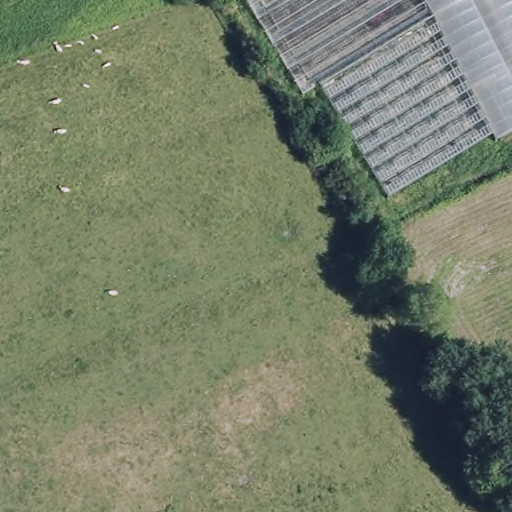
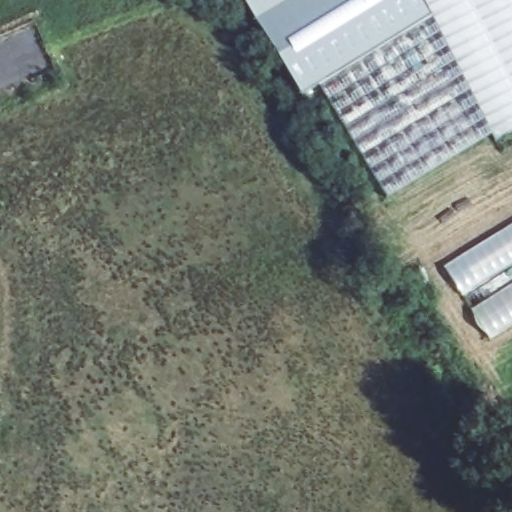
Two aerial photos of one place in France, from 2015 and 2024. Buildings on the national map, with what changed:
unchanged [(238,0),(334,0),(263,44),(238,0)]
unchanged [(420,0),(496,134),(387,200),(322,85),(302,97),(268,40),(334,0),(420,0)]
unchanged [(497,137),(420,0),(512,0),(512,129),(497,137)]
new [(462,296),(445,267),(512,225),(512,265),(462,296)]
new [(490,340),(470,310),(512,284),(512,326),(490,340)]

